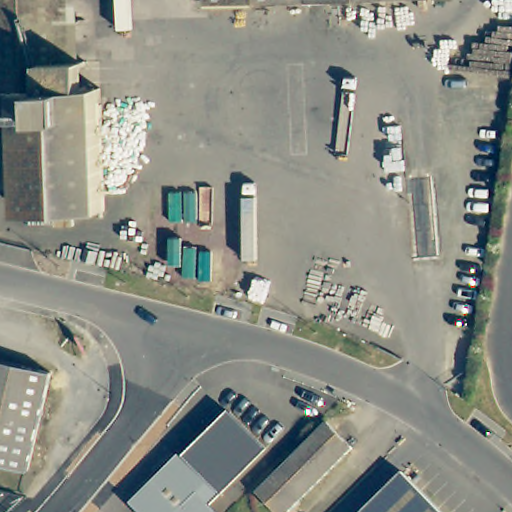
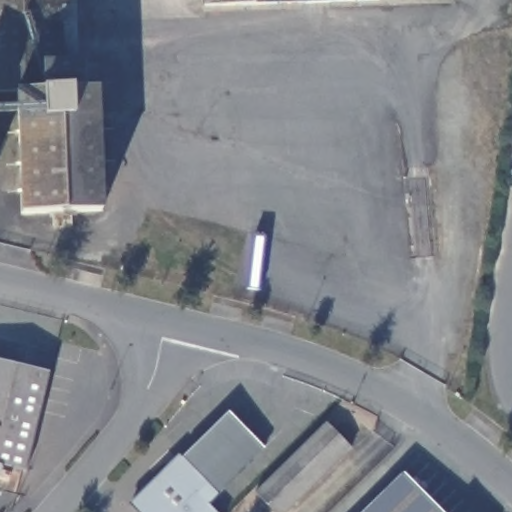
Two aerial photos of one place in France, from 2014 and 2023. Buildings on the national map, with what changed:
unchanged [(59,60),(0,60),(0,0),(56,0),(59,60)]
unchanged [(198,0),(399,0),(400,3),(199,10),(198,0)]
unchanged [(405,3),(405,0),(452,0),(452,2),(405,3)]
unchanged [(59,60),(79,61),(79,89),(16,91),(0,91),(0,60),(59,60)]
unchanged [(51,229),(51,215),(20,216),(16,91),(79,89),(94,89),(98,213),(71,214),(71,229),(51,229)]
unchanged [(0,474),(0,368),(47,381),(22,480),(0,474)]
unchanged [(229,416),(265,454),(207,508),(168,473),(229,416)]
unchanged [(355,455),(297,512),(268,512),(255,497),(327,426),(355,455)]
unchanged [(441,512),(363,512),(404,472),(441,512)]
unchanged [(211,512),(134,512),(131,508),(168,473),(207,508),(211,512)]

